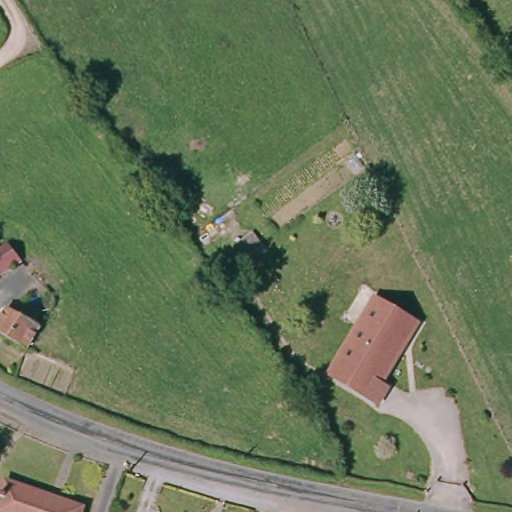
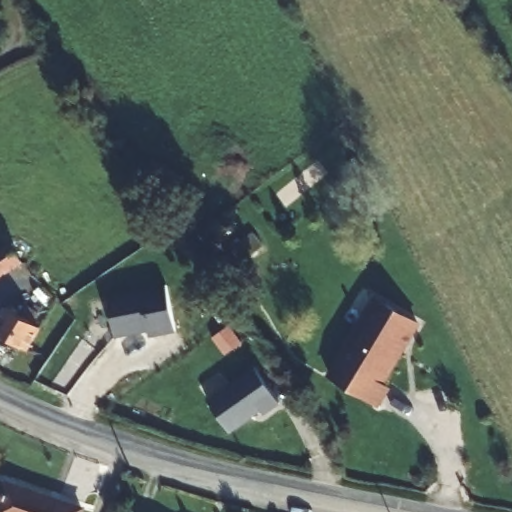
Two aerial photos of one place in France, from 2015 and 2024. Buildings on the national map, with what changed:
unchanged [(25,260),(0,279),(0,248),(10,241),(25,260)]
new [(163,289),(173,335),(147,340),(145,335),(112,341),(104,302),(163,289)]
unchanged [(375,295),(417,322),(380,380),(385,383),(373,400),(327,372),(375,295)]
unchanged [(0,326),(7,310),(37,323),(41,325),(30,346),(13,339),(0,334),(0,326)]
new [(210,341),(225,330),(237,345),(222,357),(210,341)]
new [(277,405),(262,416),(259,412),(228,435),(206,405),(252,370),(277,405)]
unchanged [(14,485),(87,507),(85,512),(6,512),(14,485)]

